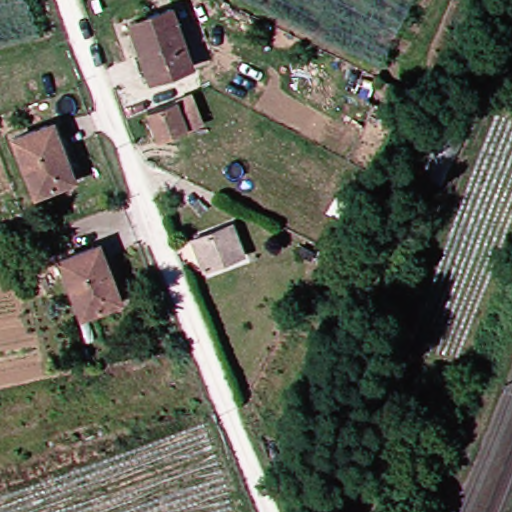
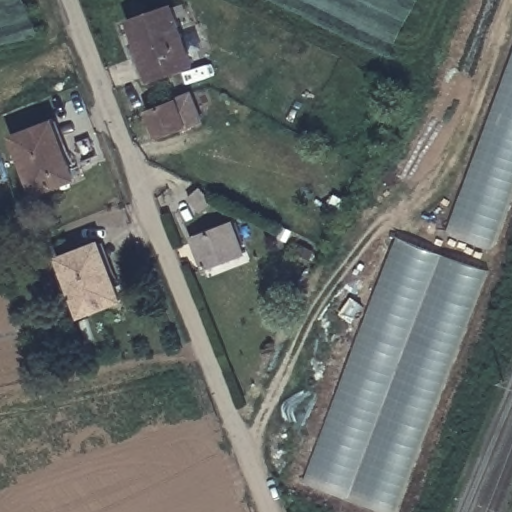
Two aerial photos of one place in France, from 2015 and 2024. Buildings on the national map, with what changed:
unchanged [(129,32),(126,22),(166,5),(188,61),(138,79),(122,35),(129,32)]
new [(512,191),(490,250),(449,233),(512,60),(512,191)]
unchanged [(171,94),(181,122),(156,131),(155,129),(148,132),(139,106),(171,94)]
unchanged [(22,194),(2,139),(35,128),(44,125),(62,171),(56,173),(59,180),(22,194)]
unchanged [(220,222),(233,257),(197,269),(185,236),(220,222)]
new [(398,236),(487,271),(395,512),(381,512),(306,481),(398,236)]
unchanged [(69,317),(50,261),(81,248),(92,244),(108,292),(103,294),(106,303),(69,317)]

